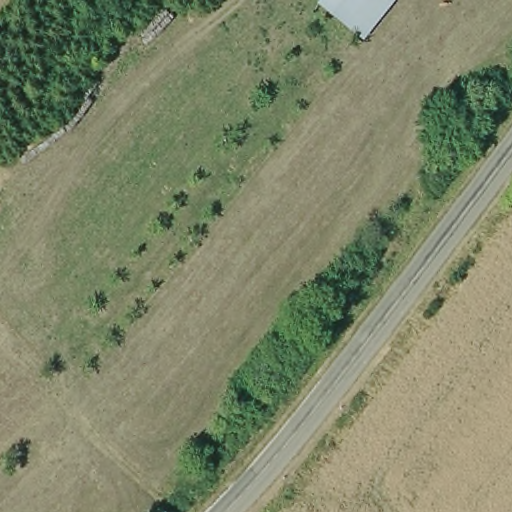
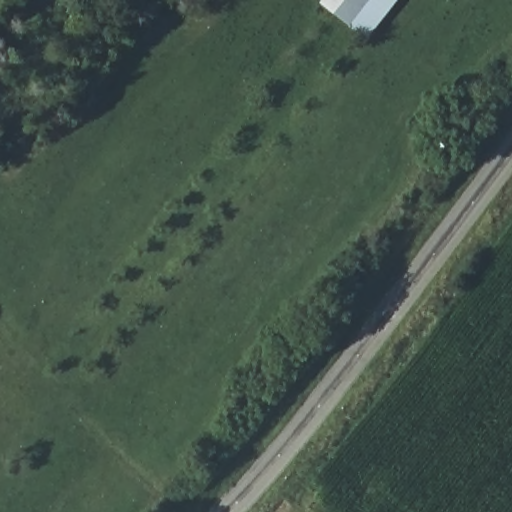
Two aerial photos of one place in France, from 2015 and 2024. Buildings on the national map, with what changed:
unchanged [(319,5),(323,0),(395,0),(366,39),(319,5)]

